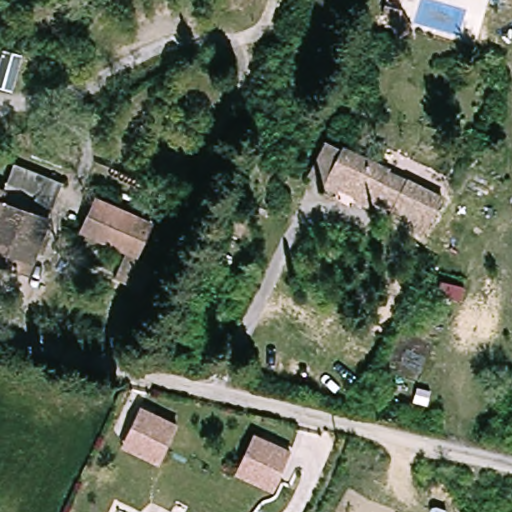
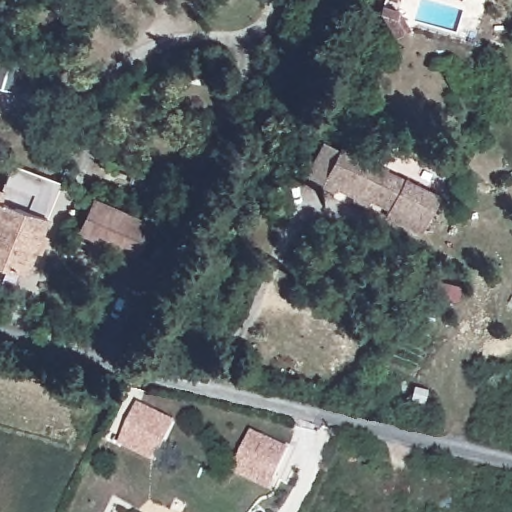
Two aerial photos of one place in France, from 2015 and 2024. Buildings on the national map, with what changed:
unchanged [(382,7),(396,0),(399,0),(415,25),(397,36),(382,7)]
unchanged [(305,169),(324,134),(385,165),(365,203),(351,195),(330,185),(305,169)]
unchanged [(28,272),(0,261),(0,199),(0,200),(15,159),(65,178),(28,272)]
unchanged [(442,195),(420,233),(385,214),(406,176),(438,194),(442,195)]
unchanged [(78,230),(97,192),(157,219),(143,255),(78,230)]
unchanged [(180,427),(162,465),(125,447),(143,410),(180,427)]
unchanged [(292,454),(272,493),(237,475),(255,436),(292,454)]

